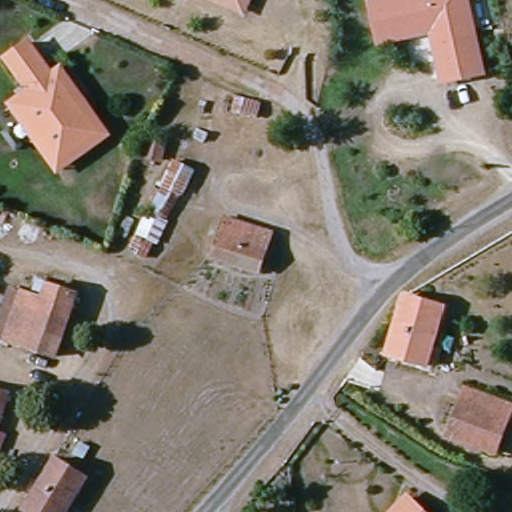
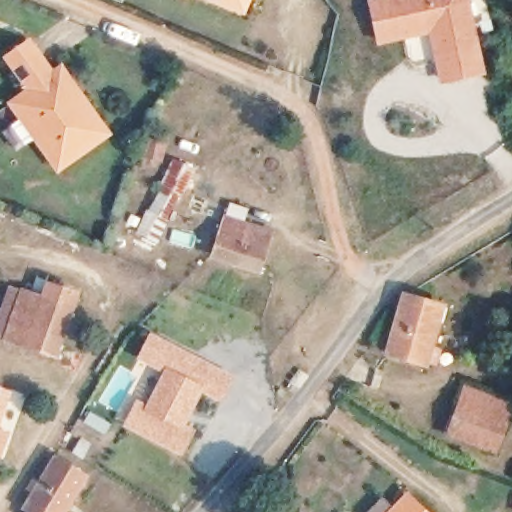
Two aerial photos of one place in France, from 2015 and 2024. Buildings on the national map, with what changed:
unchanged [(219,10),(197,0),(246,0),(239,17),(219,10)]
unchanged [(488,73),(447,82),(436,32),(384,43),(375,2),(386,0),(472,0),(488,73)]
unchanged [(99,138),(60,166),(21,111),(37,99),(32,93),(30,90),(27,92),(23,86),(6,63),(29,47),(52,79),(55,77),(99,138)]
unchanged [(37,99),(21,111),(60,166),(99,138),(55,77),(61,72),(109,140),(58,176),(10,109),(32,93),(37,99)]
unchanged [(162,161),(139,155),(143,139),(166,145),(162,161)]
unchanged [(182,194),(163,184),(174,161),(193,171),(182,194)]
unchanged [(131,250),(139,233),(149,211),(152,212),(162,188),(179,196),(158,242),(154,240),(146,257),(131,250)]
unchanged [(259,272),(213,257),(225,219),(272,233),(259,272)]
unchanged [(55,357),(5,339),(22,290),(42,297),(46,287),(36,284),(38,280),(78,293),(55,357)]
unchanged [(426,366),(386,354),(404,295),(444,307),(426,366)]
new [(235,376),(221,402),(203,392),(187,424),(198,430),(183,457),(122,426),(137,398),(146,403),(163,371),(136,359),(149,332),(235,376)]
unchanged [(457,412),(465,388),(512,405),(512,406),(504,429),(457,412)]
unchanged [(0,419),(0,390),(9,393),(0,419)]
unchanged [(495,453),(448,436),(457,412),(504,429),(495,453)]
unchanged [(3,435),(0,445),(0,434),(3,435)]
unchanged [(83,460),(73,453),(80,442),(90,447),(83,460)]
unchanged [(29,512),(24,509),(55,458),(86,477),(65,512),(29,512)]
unchanged [(419,512),(387,512),(402,496),(419,512)]

